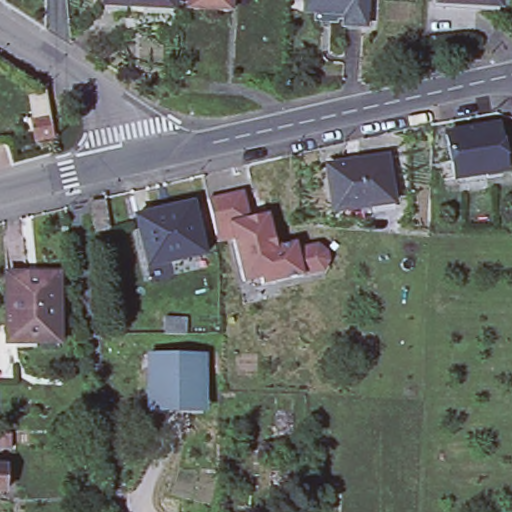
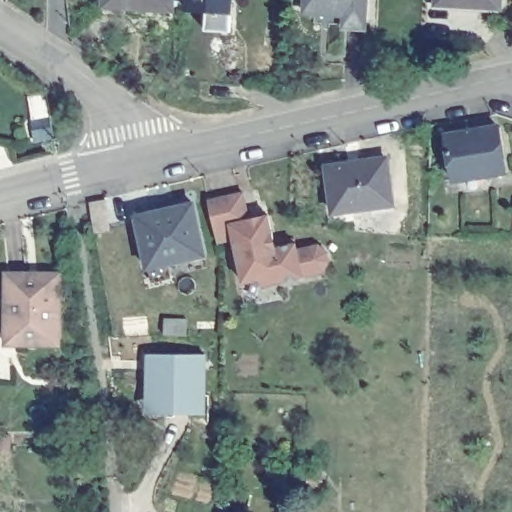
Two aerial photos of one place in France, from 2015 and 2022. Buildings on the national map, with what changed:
unchanged [(105,6),(105,0),(172,0),(172,9),(105,6)]
unchanged [(187,10),(188,0),(232,0),(231,12),(187,10)]
unchanged [(339,10),(339,7),(320,6),(320,9),(305,7),(305,0),(366,0),(365,23),(345,22),(345,10),(339,10)]
unchanged [(457,2),(440,2),(440,4),(437,4),(438,0),(500,0),(500,7),(457,5),(457,2)]
unchanged [(442,166),(450,164),(445,136),(498,127),(505,172),(454,180),(445,182),(442,166)]
unchanged [(393,204),(333,213),(327,167),(387,158),(393,204)]
unchanged [(243,192),(249,220),(268,216),(275,248),(295,244),(297,250),(318,245),(327,252),(329,262),(324,272),(262,286),(260,278),(243,282),(234,240),(217,243),(215,235),(208,201),(243,192)]
unchanged [(90,203),(105,201),(110,231),(95,232),(90,203)]
unchanged [(193,204),(205,256),(147,268),(136,217),(193,204)]
unchanged [(39,356),(39,338),(7,337),(7,327),(7,273),(38,272),(38,268),(60,267),(60,338),(60,357),(39,356)]
unchanged [(187,319),(186,336),(164,335),(165,318),(187,319)]
unchanged [(150,413),(150,397),(150,358),(150,355),(204,355),(204,357),(204,397),(203,413),(150,413)]
unchanged [(277,399),(294,400),(292,433),(275,433),(277,399)]
unchanged [(11,471),(11,496),(0,495),(0,470),(11,471)]
unchanged [(309,488),(309,472),(322,472),(322,488),(309,488)]

